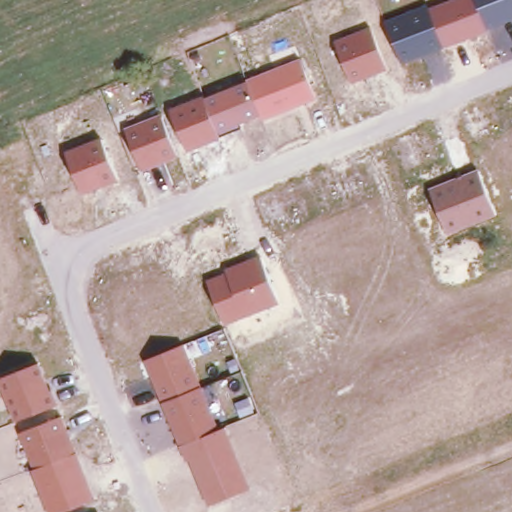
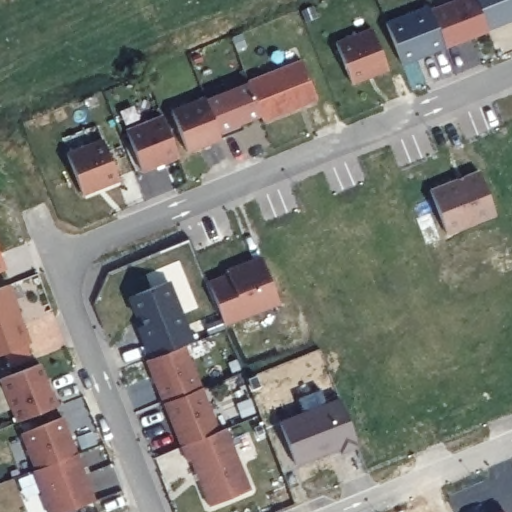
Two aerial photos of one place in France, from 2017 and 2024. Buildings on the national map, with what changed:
unchanged [(444,49),(429,9),(452,0),(475,0),(488,30),(488,32),(444,49)]
unchanged [(475,0),(512,0),(512,21),(488,30),(475,0)]
unchanged [(403,65),(387,21),(428,6),(429,9),(444,49),(403,65)]
unchanged [(351,85),(335,42),(372,28),(388,72),(351,85)]
unchanged [(263,122),(261,117),(248,83),(246,80),(301,59),(317,101),(263,122)]
unchanged [(221,139),(206,99),(248,83),(261,117),(241,125),(243,130),(221,139)]
unchanged [(187,153),(170,109),(205,96),(206,99),(221,139),(221,141),(187,153)]
unchanged [(142,173),(125,129),(161,115),(178,159),(142,173)]
unchanged [(82,196),(66,152),(103,138),(120,183),(82,196)]
unchanged [(478,170),(496,217),(447,235),(430,189),(478,170)]
new [(6,269),(0,271),(0,254),(6,269)]
unchanged [(207,281),(227,274),(225,270),(261,256),(280,305),(225,327),(207,281)]
new [(193,341),(186,344),(154,356),(128,295),(166,279),(193,341)]
new [(6,283),(29,341),(0,352),(0,285),(6,283)]
unchanged [(146,360),(154,356),(186,344),(204,387),(163,403),(146,360)]
unchanged [(16,421),(0,381),(0,379),(41,365),(50,392),(54,391),(58,405),(16,421)]
unchanged [(163,403),(204,387),(221,429),(180,446),(163,403)]
new [(279,421),(303,411),(297,398),(320,389),(326,403),(340,397),(359,448),(341,455),(339,450),(297,466),(279,421)]
unchanged [(35,470),(21,434),(63,417),(77,454),(35,470)]
unchanged [(209,507),(192,460),(186,462),(180,446),(221,429),(228,427),(252,490),(209,507)]
unchanged [(47,512),(32,471),(35,470),(77,454),(95,500),(65,512),(47,512)]

